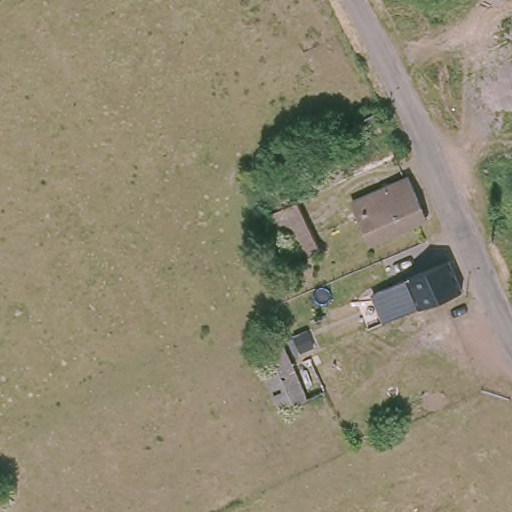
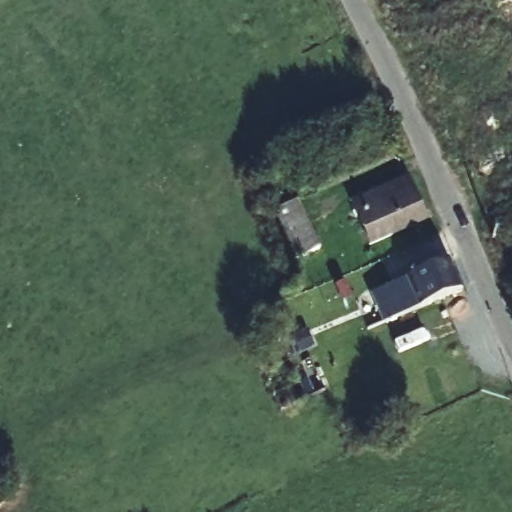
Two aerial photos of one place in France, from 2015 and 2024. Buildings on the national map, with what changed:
unchanged [(423,218),(374,240),(370,242),(352,204),(405,179),(423,218)]
unchanged [(322,247),(298,259),(277,212),(300,201),(322,247)]
unchanged [(457,292),(372,330),(360,302),(443,264),(457,292)]
unchanged [(290,344),(310,397),(277,412),(257,358),(290,344)]

